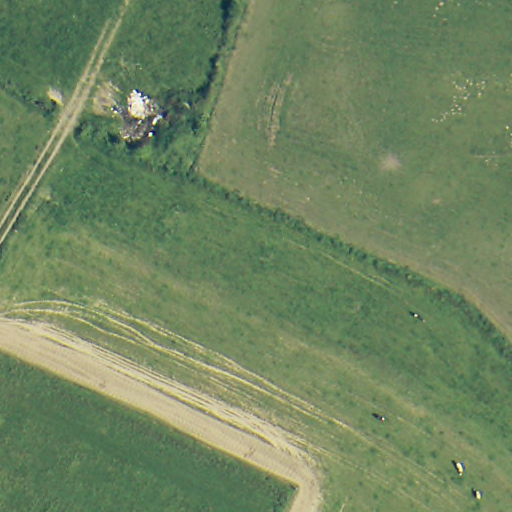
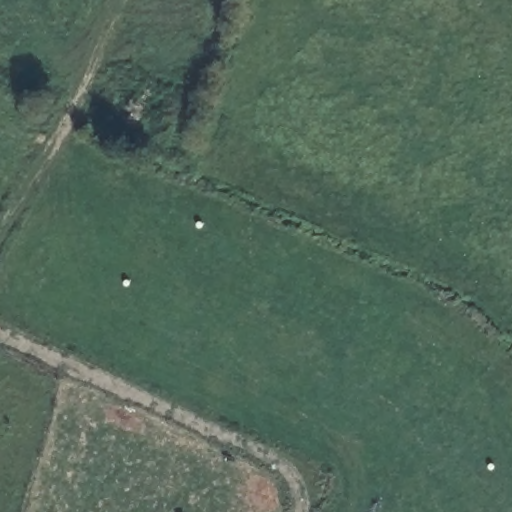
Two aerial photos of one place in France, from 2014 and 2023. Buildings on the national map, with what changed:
[]

